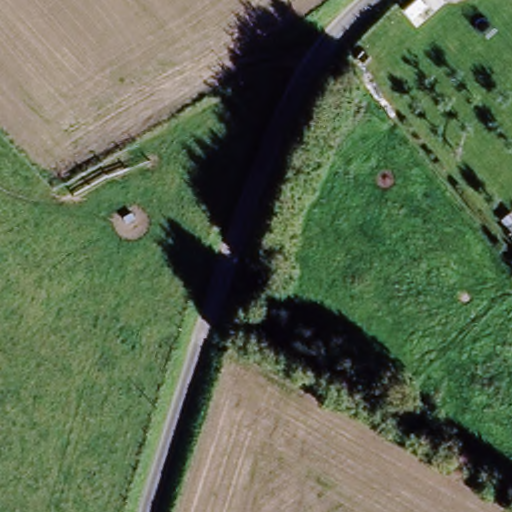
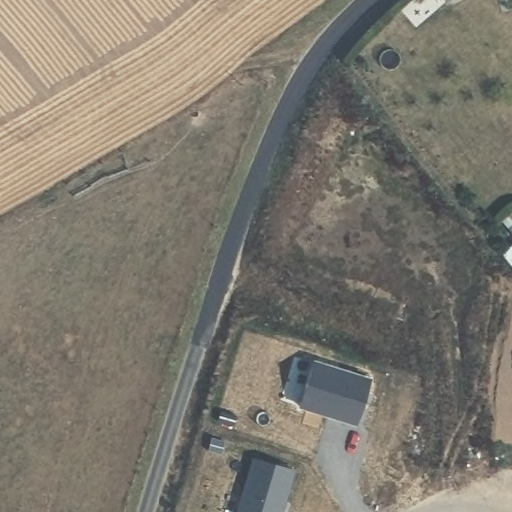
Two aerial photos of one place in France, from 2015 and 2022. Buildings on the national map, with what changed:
unchanged [(443,0),(437,6),(431,0),(443,0)]
new [(313,362),(370,380),(356,424),(299,406),(313,362)]
new [(253,458),(294,471),(282,512),(237,512),(253,458)]

